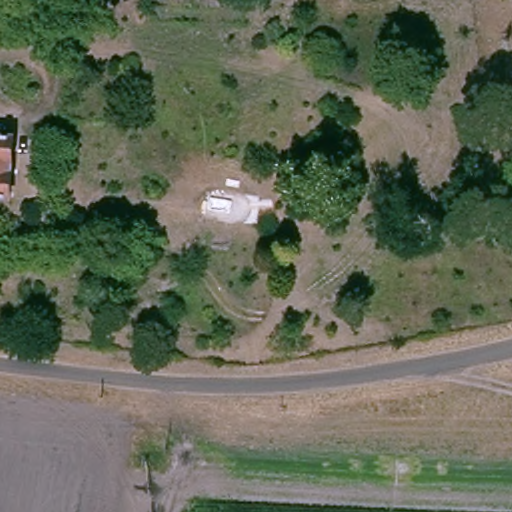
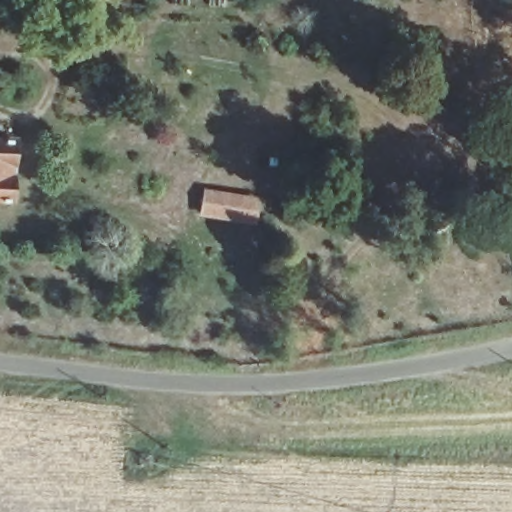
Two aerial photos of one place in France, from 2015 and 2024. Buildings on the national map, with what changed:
unchanged [(9,202),(0,201),(0,141),(15,141),(9,202)]
new [(205,187),(262,197),(257,224),(200,217),(205,187)]

